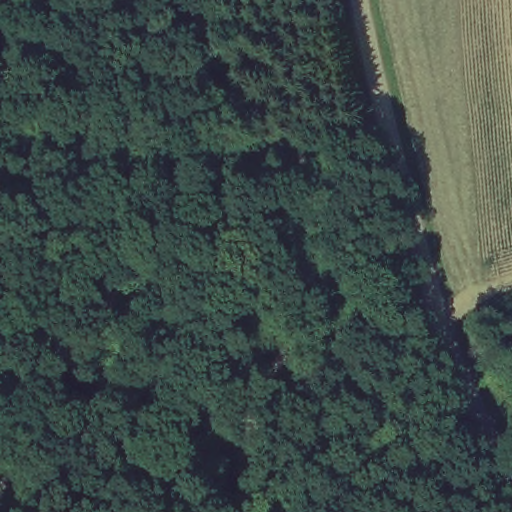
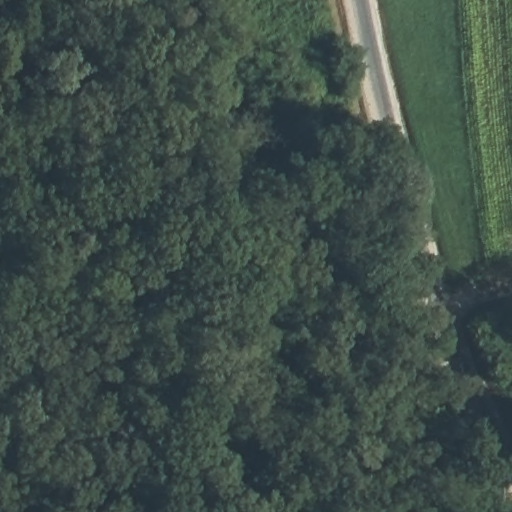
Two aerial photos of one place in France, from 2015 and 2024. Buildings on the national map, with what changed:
[]

